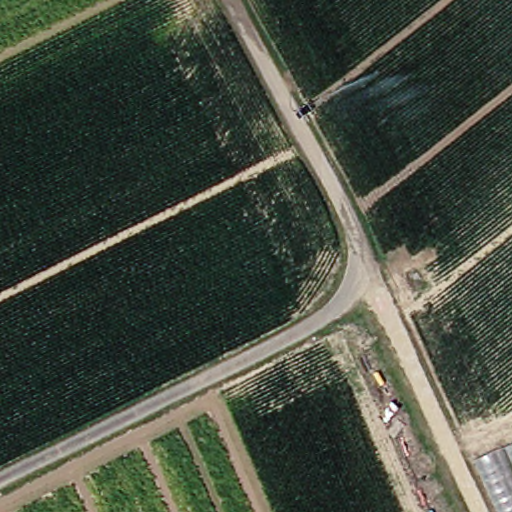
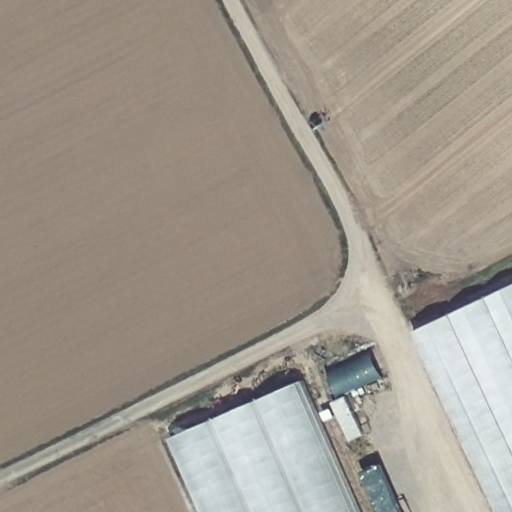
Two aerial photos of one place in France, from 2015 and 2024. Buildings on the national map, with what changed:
new [(499,512),(412,331),(512,281),(512,512),(499,512)]
new [(363,512),(204,512),(177,446),(310,380),(363,512)]

